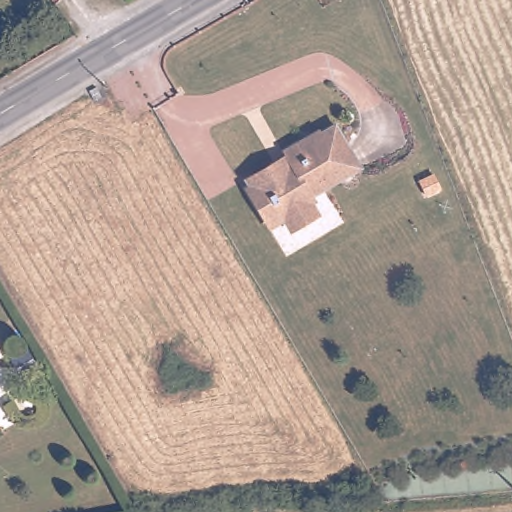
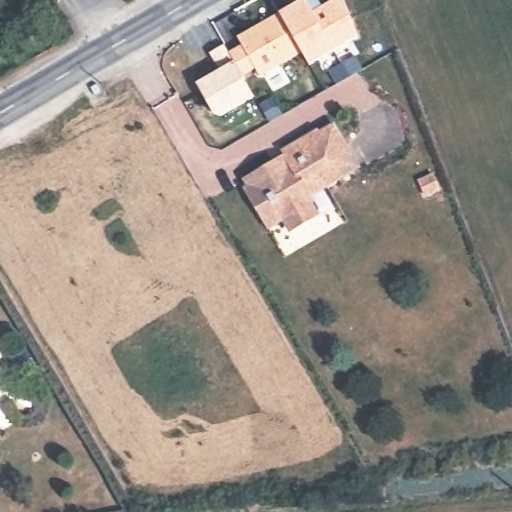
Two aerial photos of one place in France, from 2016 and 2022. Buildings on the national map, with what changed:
new [(335,47),(338,50),(309,65),(301,50),(260,77),(255,69),(243,74),(256,97),(217,120),(195,82),(218,70),(208,52),(225,42),(229,50),(240,45),(237,37),(278,12),(301,0),(317,0),(319,6),(332,0),(344,0),(358,37),(335,47)]
unchanged [(244,176),(273,160),(277,167),(289,161),(282,149),(317,129),(319,131),(333,123),(346,144),(340,147),(353,169),(310,194),(313,199),(310,201),(313,206),(310,216),(294,225),(285,222),(281,214),(274,219),(263,215),(245,185),(249,182),(244,176)]

